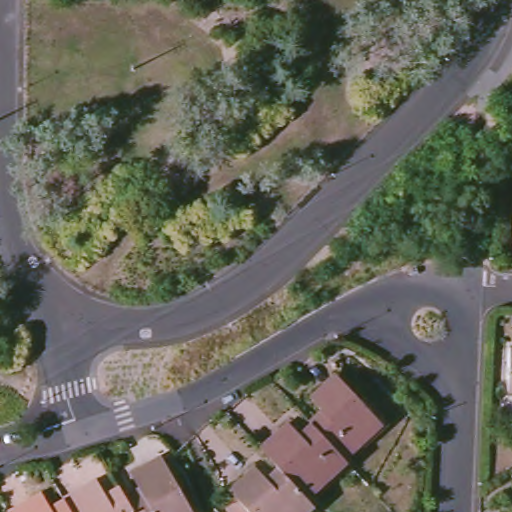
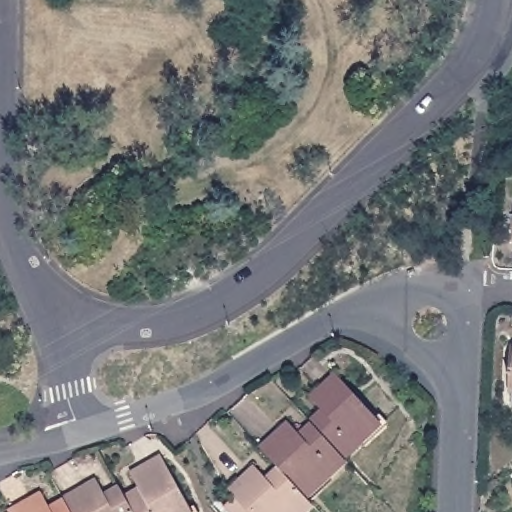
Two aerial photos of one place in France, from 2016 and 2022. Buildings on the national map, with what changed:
unchanged [(511,241),(512,234),(512,241),(511,241)]
unchanged [(506,390),(508,349),(512,349),(512,391),(506,390)]
unchanged [(310,418),(308,415),(320,404),(310,392),(335,369),(381,420),(343,454),(310,418)]
unchanged [(277,463),(259,443),(286,418),(297,431),(310,418),(343,454),(346,457),(305,493),(277,463)]
unchanged [(122,496),(122,495),(138,486),(130,471),(159,454),(192,512),(132,512),(122,496)]
unchanged [(230,508),(222,499),(233,490),(228,484),(255,461),(265,473),(277,463),(305,493),(311,500),(298,512),(253,512),(250,509),(246,512),(234,512),(230,508)]
unchanged [(95,478),(103,492),(116,485),(122,495),(122,496),(132,512),(69,512),(61,498),(60,497),(95,478)]
unchanged [(5,510),(38,492),(46,507),(61,498),(69,512),(6,512),(5,510)]
unchanged [(5,510),(6,512),(3,512),(5,510)]

